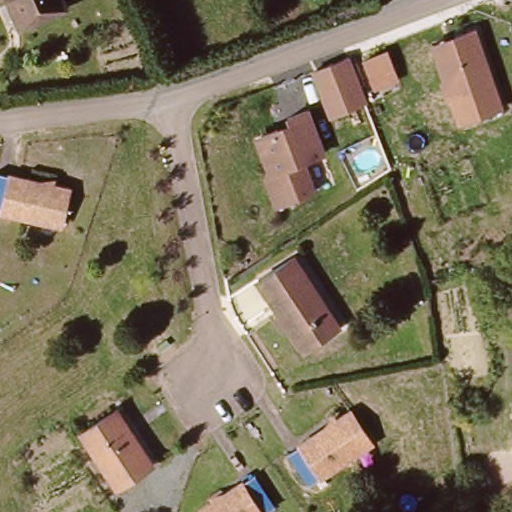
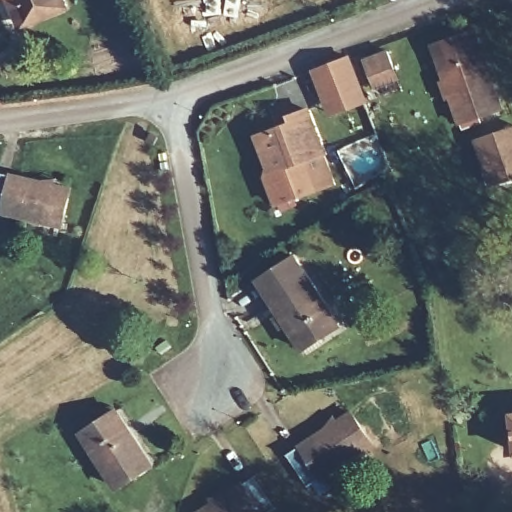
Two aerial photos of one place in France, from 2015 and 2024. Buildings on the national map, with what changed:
unchanged [(10,0),(61,0),(64,9),(25,22),(18,25),(10,0)]
unchanged [(430,45),(476,29),(503,110),(458,126),(449,101),(445,102),(438,81),(442,81),(430,45)]
unchanged [(399,81),(375,90),(363,59),(387,50),(399,81)]
unchanged [(310,70),(347,56),(365,100),(327,114),(310,70)]
unchanged [(267,174),(269,169),(275,167),(262,133),(278,126),(279,129),(292,124),(288,115),(308,107),(325,150),(305,158),(316,187),(278,201),(267,174)]
new [(473,139),(512,126),(512,181),(490,188),(473,139)]
unchanged [(70,193),(61,230),(0,215),(0,175),(70,193)]
unchanged [(299,253),(342,327),(302,349),(260,277),(299,253)]
unchanged [(115,411),(149,466),(113,488),(80,433),(115,411)]
unchanged [(350,412),(371,444),(305,483),(285,451),(350,412)]
unchanged [(255,477),(276,510),(273,512),(199,512),(199,511),(255,477)]

